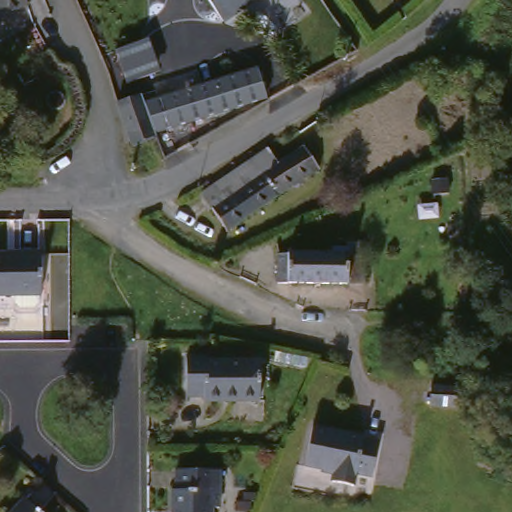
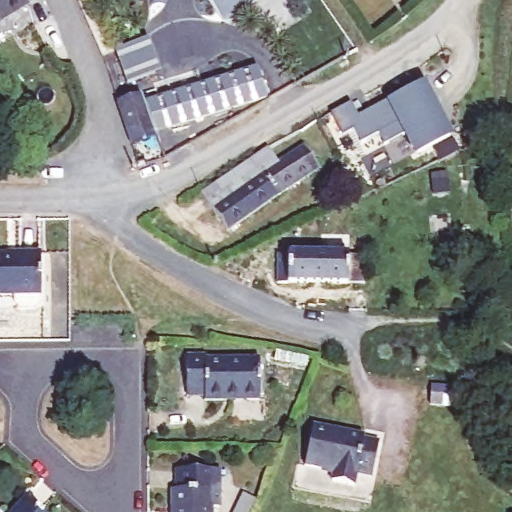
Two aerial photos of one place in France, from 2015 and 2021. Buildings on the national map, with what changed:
unchanged [(33,7),(0,23),(0,0),(38,0),(32,3),(33,7)]
unchanged [(213,0),(247,0),(220,13),(213,0)]
unchanged [(126,82),(115,50),(150,38),(161,71),(126,82)]
unchanged [(268,95),(158,141),(143,104),(229,72),(257,62),(261,73),(268,95)]
new [(350,103),(356,115),(386,99),(424,79),(453,134),(413,154),(400,132),(383,142),(378,132),(359,141),(353,128),(341,134),(331,113),(350,103)]
unchanged [(135,150),(118,113),(143,104),(158,141),(135,150)]
unchanged [(313,182),(223,239),(203,208),(255,175),(259,182),(298,158),(313,182)]
unchanged [(296,284),(293,287),(277,286),(278,261),(283,260),(285,253),(356,255),(361,259),(360,285),(296,284)]
unchanged [(40,298),(0,298),(0,258),(41,259),(40,298)]
unchanged [(255,406),(203,404),(203,401),(184,400),(185,360),(203,361),(203,365),(256,366),(255,406)]
unchanged [(455,396),(450,414),(424,409),(427,391),(455,396)]
unchanged [(364,443),(362,449),(378,455),(368,486),(353,481),(348,495),(324,486),(328,473),(302,464),(314,427),(364,443)]
unchanged [(215,512),(170,512),(169,497),(174,497),(173,477),(213,475),(215,512)]
unchanged [(29,508),(33,512),(25,512),(29,508)]

